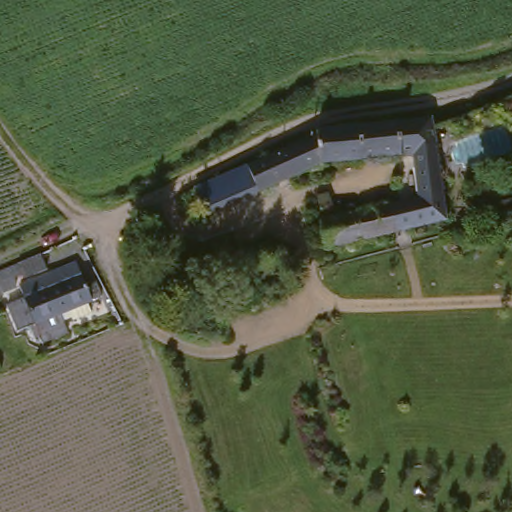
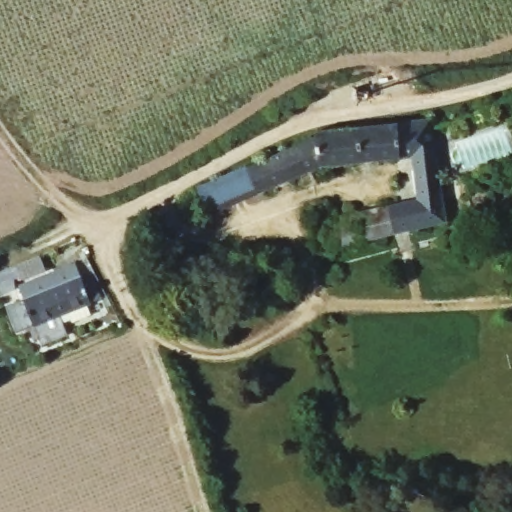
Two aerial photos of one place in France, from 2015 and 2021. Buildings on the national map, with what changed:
unchanged [(393,128),(426,124),(426,123),(431,151),(408,154),(409,160),(396,162),(319,171),(306,176),(203,216),(194,190),(311,141),(313,135),(393,128)]
unchanged [(443,226),(324,255),(318,228),(414,204),(409,160),(408,154),(431,151),(443,226)]
unchanged [(33,260),(39,273),(19,283),(13,278),(9,280),(6,292),(0,295),(0,275),(33,260)]
unchanged [(74,321),(71,312),(59,316),(66,336),(42,345),(36,329),(15,335),(6,309),(24,303),(20,288),(73,269),(86,306),(84,307),(88,317),(74,321)]

